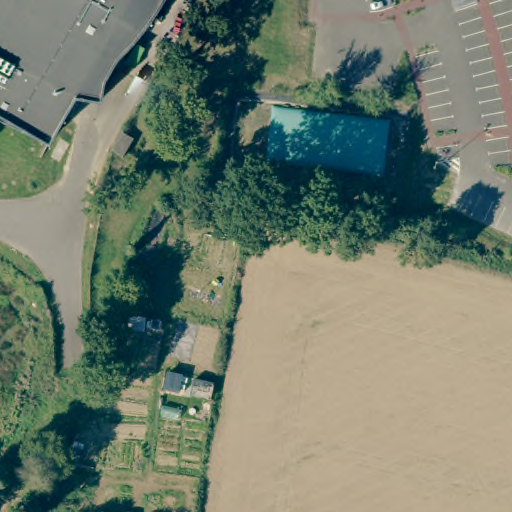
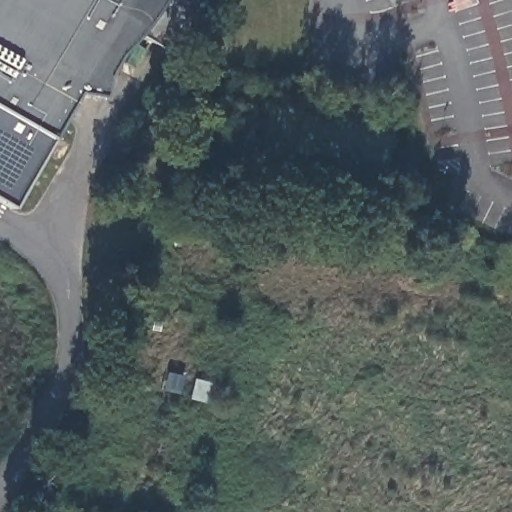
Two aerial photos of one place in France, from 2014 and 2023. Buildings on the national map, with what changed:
unchanged [(159,7),(138,33),(123,49),(110,70),(106,91),(81,87),(55,133),(0,101),(0,0),(162,0),(159,7)]
new [(10,209),(0,202),(0,101),(55,133),(10,209)]
unchanged [(126,131),(137,138),(127,155),(116,149),(126,131)]

